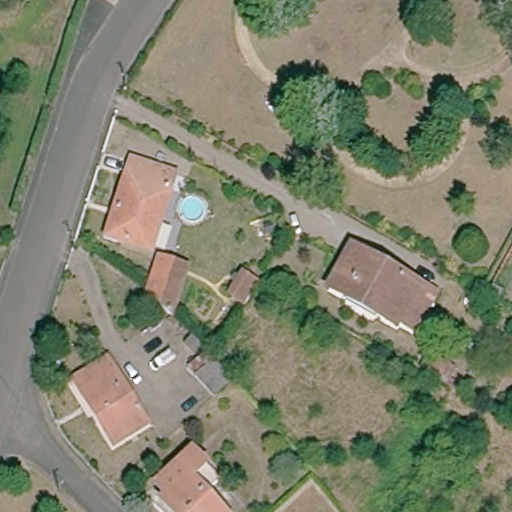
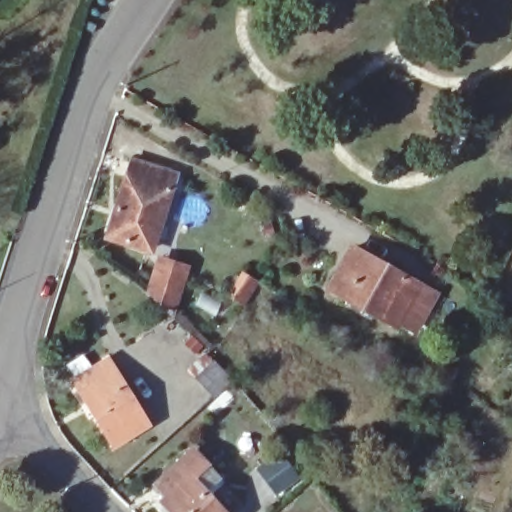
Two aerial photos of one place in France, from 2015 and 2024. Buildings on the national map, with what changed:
unchanged [(114,215),(132,161),(174,174),(150,248),(117,238),(107,235),(114,215)]
unchanged [(427,306),(413,329),(397,320),(396,324),(329,287),(352,247),(417,284),(433,293),(427,306)]
unchanged [(148,294),(157,266),(159,258),(186,267),(184,274),(171,315),(148,294)]
unchanged [(256,281),(243,303),(229,294),(242,273),(256,281)]
unchanged [(446,363),(438,375),(423,366),(430,354),(446,363)]
unchanged [(147,424),(113,445),(81,392),(92,385),(85,373),(109,359),(147,424)]
unchanged [(231,378),(213,395),(196,376),(214,359),(231,378)]
unchanged [(225,473),(210,487),(233,512),(183,512),(165,492),(170,487),(161,477),(197,444),(212,461),(225,473)]

